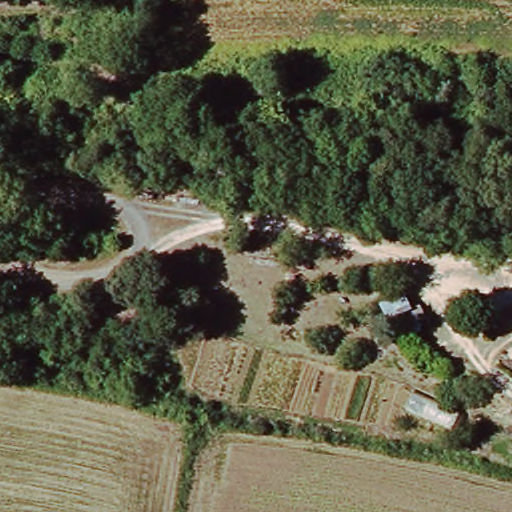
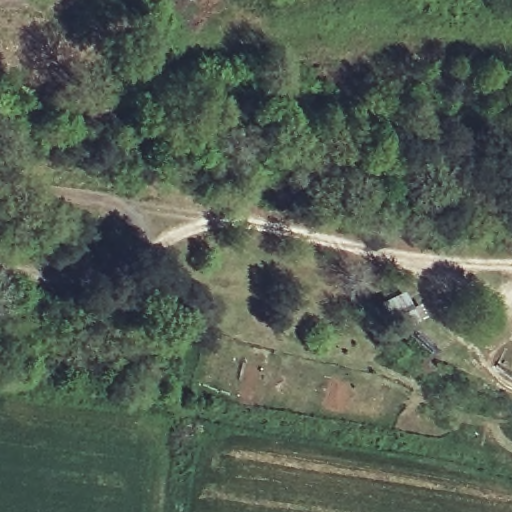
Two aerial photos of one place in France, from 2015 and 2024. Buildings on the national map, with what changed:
unchanged [(394,330),(387,316),(409,305),(416,320),(394,330)]

